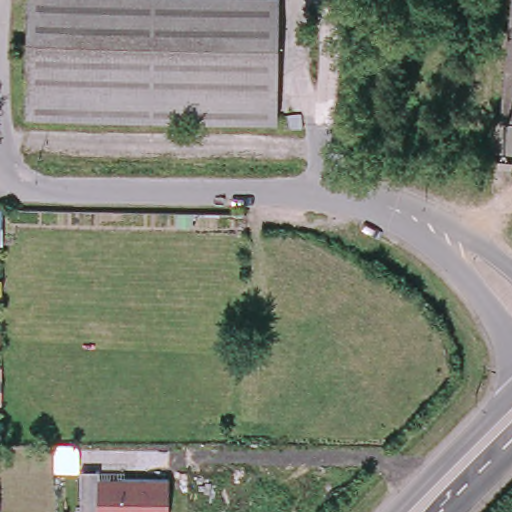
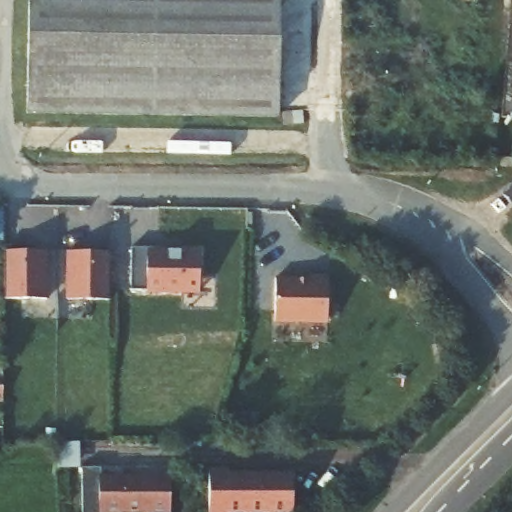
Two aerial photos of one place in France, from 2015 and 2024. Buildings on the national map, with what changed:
unchanged [(27,0),(282,0),(280,114),(26,111),(27,0)]
unchanged [(509,124),(502,123),(512,4),(512,124),(509,124)]
new [(0,244),(0,207),(2,207),(3,244),(0,244)]
new [(199,250),(198,294),(146,294),(146,292),(129,292),(131,249),(199,250)]
new [(47,251),(47,301),(3,301),(4,253),(47,251)]
new [(109,252),(107,300),(65,300),(65,252),(109,252)]
new [(310,280),(310,276),(328,276),(327,322),(274,322),(275,279),(310,280)]
unchanged [(2,405),(0,404),(0,366),(2,366),(2,405)]
unchanged [(168,476),(168,512),(82,512),(82,469),(100,469),(100,476),(168,476)]
new [(227,475),(227,479),(292,477),(293,512),(209,512),(208,476),(227,475)]

